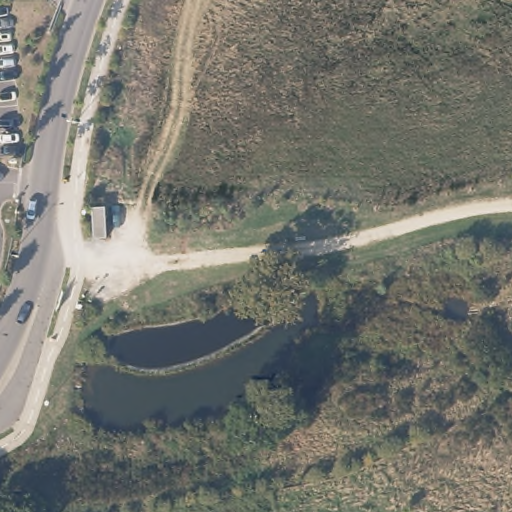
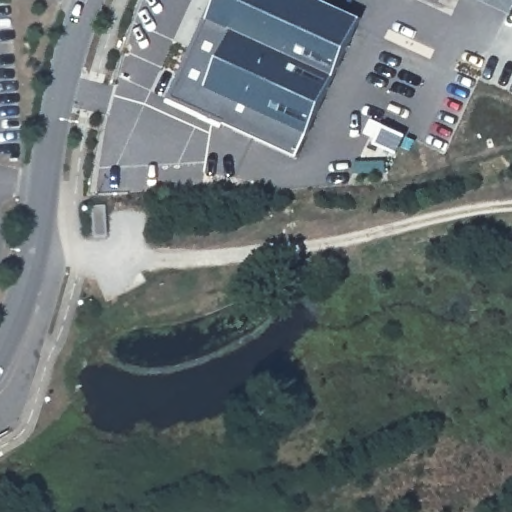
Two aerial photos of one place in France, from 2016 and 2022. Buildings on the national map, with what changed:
new [(321,0),(360,18),(297,155),(170,97),(215,0),(321,0)]

